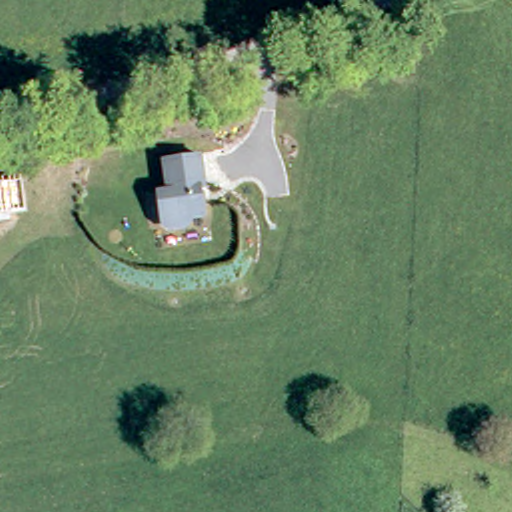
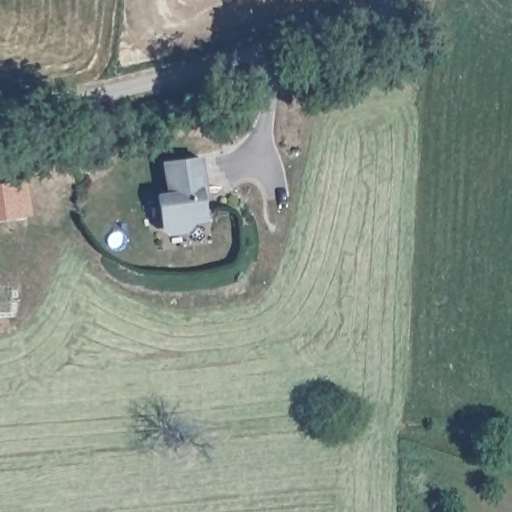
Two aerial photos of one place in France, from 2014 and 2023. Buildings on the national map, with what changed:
unchanged [(202,217),(194,217),(187,220),(182,225),(182,226),(165,227),(160,222),(158,190),(168,189),(167,157),(203,155),(203,190),(200,190),(202,217)]
new [(30,215),(0,219),(0,181),(25,177),(30,215)]

